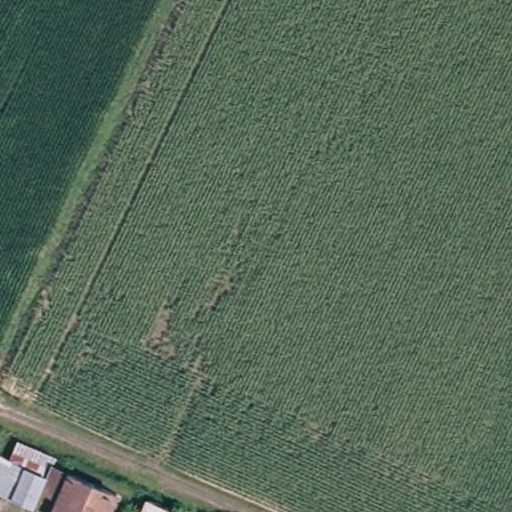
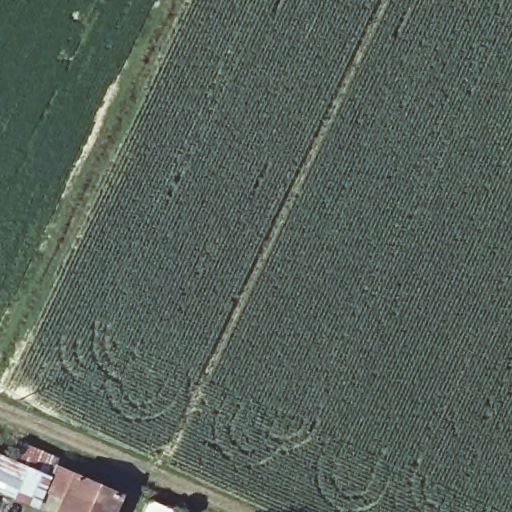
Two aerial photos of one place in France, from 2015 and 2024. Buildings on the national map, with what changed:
unchanged [(48,459),(115,489),(104,512),(51,512),(46,510),(55,494),(36,483),(26,501),(2,489),(0,488),(0,451),(41,469),(48,459)]
unchanged [(180,509),(178,512),(137,512),(144,494),(180,509)]

